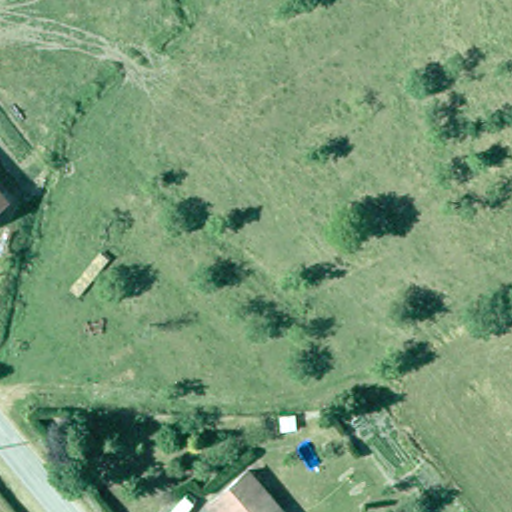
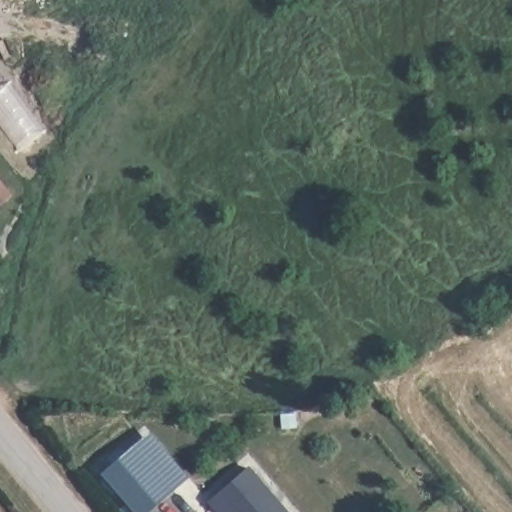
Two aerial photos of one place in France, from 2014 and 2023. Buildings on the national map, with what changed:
unchanged [(0,206),(0,192),(7,200),(0,206)]
new [(146,512),(132,512),(99,472),(150,429),(189,475),(146,512)]
unchanged [(247,473),(281,512),(214,512),(210,506),(247,473)]

